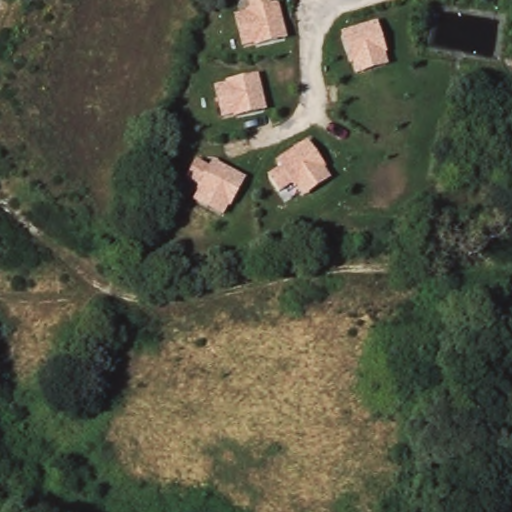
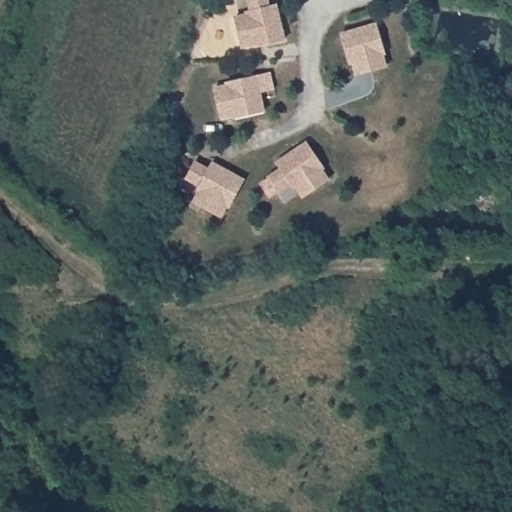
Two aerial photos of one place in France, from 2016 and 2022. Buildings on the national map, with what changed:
unchanged [(251,10),(248,0),(271,0),(272,4),(279,1),(287,39),(243,48),(235,14),(251,10)]
unchanged [(343,31),(378,21),(390,65),(356,75),(343,31)]
unchanged [(214,85),(258,75),(266,109),(222,119),(214,85)]
unchanged [(268,175),(280,166),(277,161),(306,140),(333,178),(304,198),(294,185),(279,194),(268,175)]
unchanged [(193,200),(200,185),(186,179),(197,159),(210,165),(213,160),(246,178),(224,218),(193,200)]

